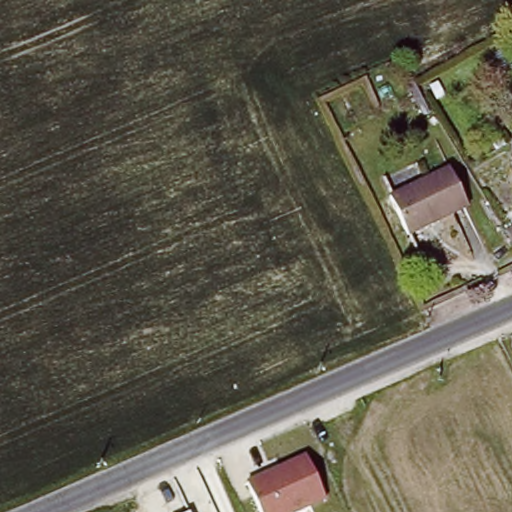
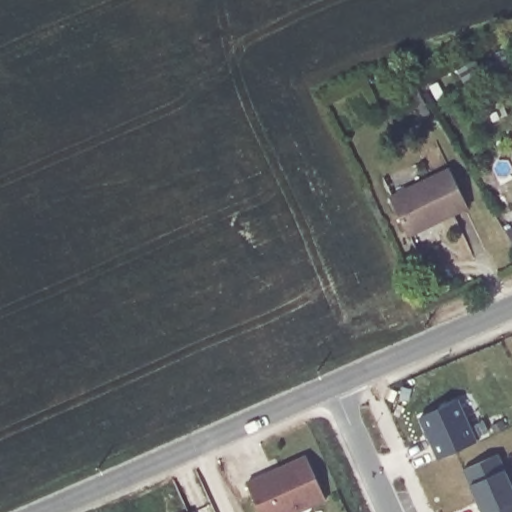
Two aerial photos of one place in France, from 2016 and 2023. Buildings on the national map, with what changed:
unchanged [(451,163),(468,202),(408,230),(390,191),(451,163)]
unchanged [(512,223),(512,237),(505,226),(512,223)]
new [(437,457),(420,416),(458,399),(476,440),(437,457)]
new [(512,486),(512,512),(481,512),(482,511),(470,484),(465,468),(498,453),(505,469),(512,486)]
unchanged [(295,512),(259,512),(246,482),(305,456),(324,499),(295,512)]

